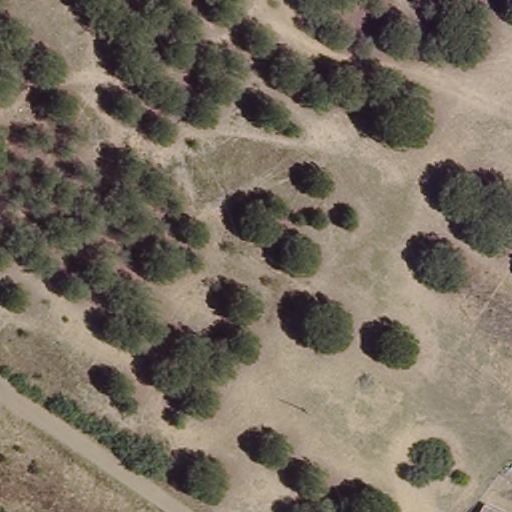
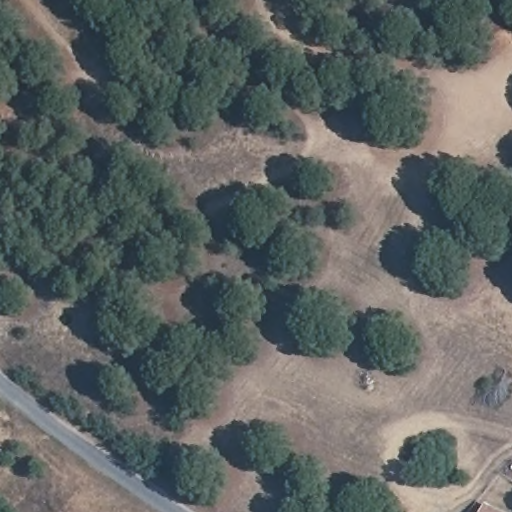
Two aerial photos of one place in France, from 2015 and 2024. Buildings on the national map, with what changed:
unchanged [(497,512),(481,512),(484,506),(497,512)]

